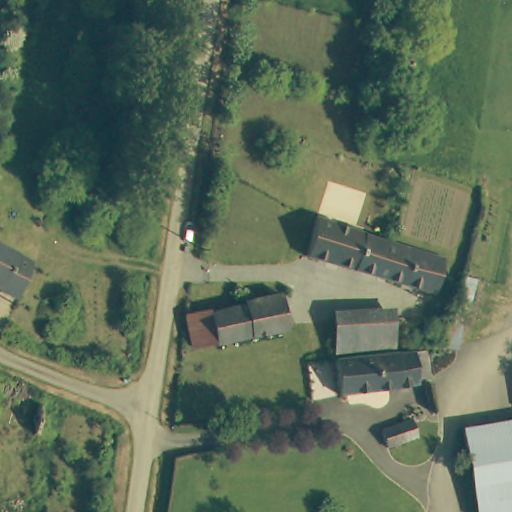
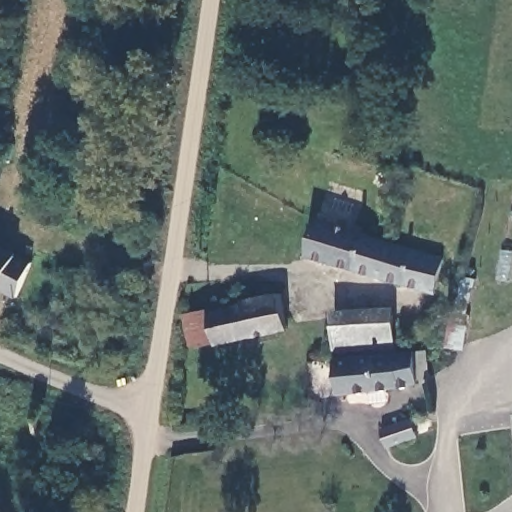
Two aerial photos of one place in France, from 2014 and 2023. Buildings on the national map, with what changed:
unchanged [(448,252),(440,285),(311,254),(319,221),(448,252)]
unchanged [(0,241),(35,260),(18,295),(0,284),(0,241)]
unchanged [(209,313),(283,297),(290,327),(216,342),(203,346),(197,318),(197,316),(209,313)]
unchanged [(385,306),(391,342),(341,350),(335,313),(385,306)]
unchanged [(373,355),(378,357),(413,352),(417,387),(344,395),(339,359),(373,355)]
demolished [(30,422),(0,418),(0,389),(33,393),(30,422)]
unchanged [(420,416),(426,431),(384,446),(379,431),(420,416)]
demolished [(512,421),(512,512),(474,512),(461,432),(512,421)]

